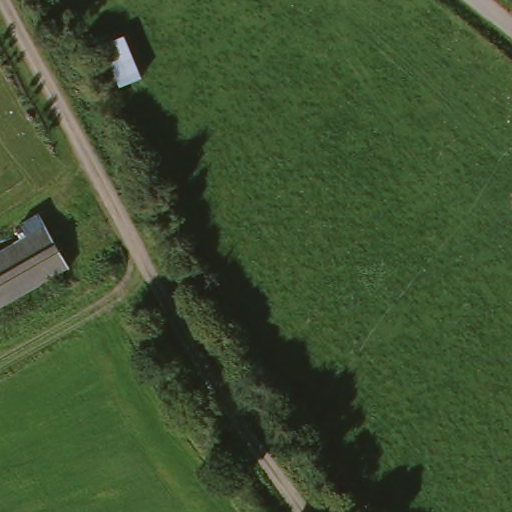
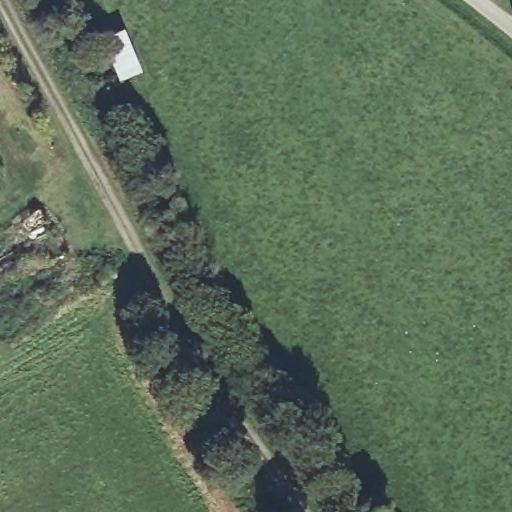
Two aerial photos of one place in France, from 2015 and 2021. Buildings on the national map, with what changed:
unchanged [(125,88),(107,40),(131,31),(150,77),(125,88)]
demolished [(72,252),(0,296),(0,245),(52,213),(72,252)]

